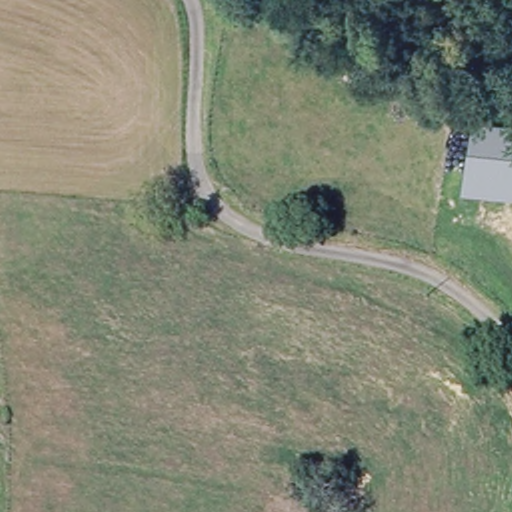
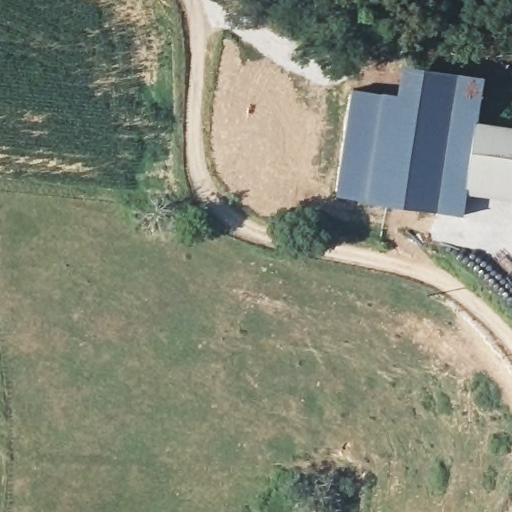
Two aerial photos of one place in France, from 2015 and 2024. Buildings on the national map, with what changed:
new [(472,120),(461,193),(465,193),(462,215),(362,202),(363,199),(332,194),(350,88),(380,92),(380,90),(396,93),(400,63),(482,74),(476,120),(472,120)]
unchanged [(512,200),(461,193),(472,120),(512,125),(512,200)]

